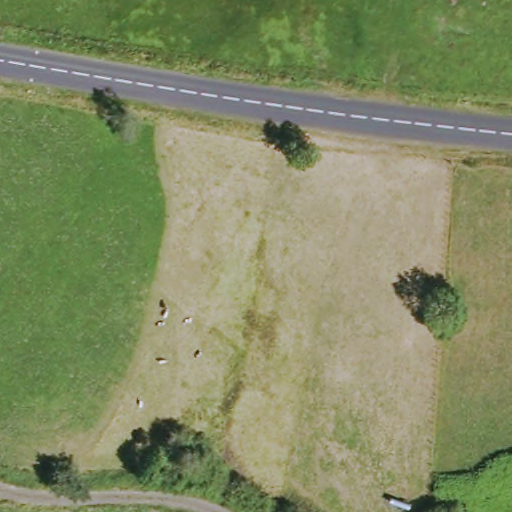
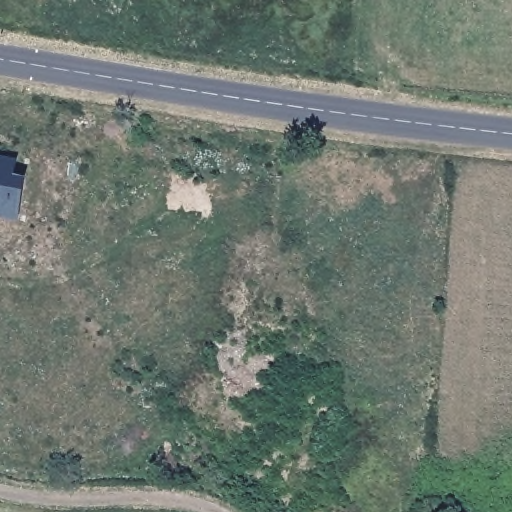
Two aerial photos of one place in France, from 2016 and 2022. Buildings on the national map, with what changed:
new [(19,161),(16,176),(27,178),(20,222),(0,218),(0,156),(19,161)]

